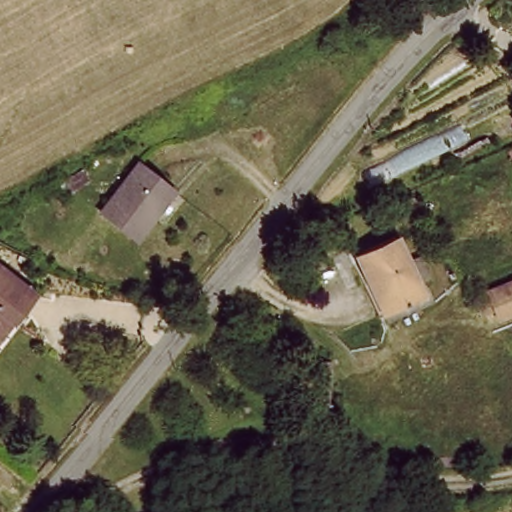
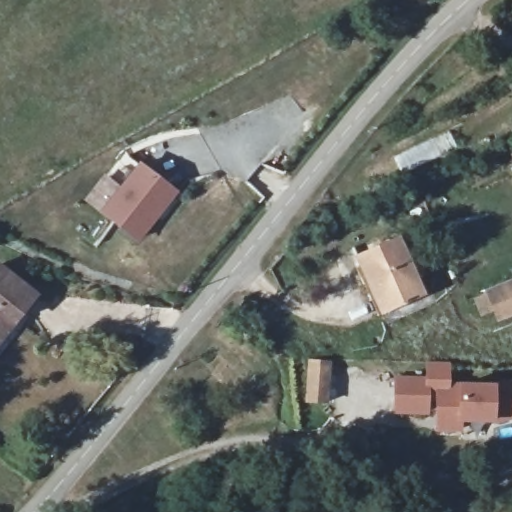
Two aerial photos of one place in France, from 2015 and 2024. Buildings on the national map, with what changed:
unchanged [(103,212),(141,162),(176,190),(136,237),(103,212)]
unchanged [(359,258),(398,237),(427,286),(389,307),(359,258)]
unchanged [(38,286),(0,340),(0,260),(38,286)]
unchanged [(512,288),(512,317),(511,318),(499,297),(512,288)]
demolished [(310,346),(287,357),(269,321),(292,309),(310,346)]
unchanged [(339,362),(333,421),(304,420),(310,357),(339,362)]
new [(426,363),(452,364),(452,384),(458,385),(495,386),(512,381),(512,421),(492,425),(465,424),(464,435),(435,435),(434,417),(392,415),(394,378),(426,378),(426,363)]

